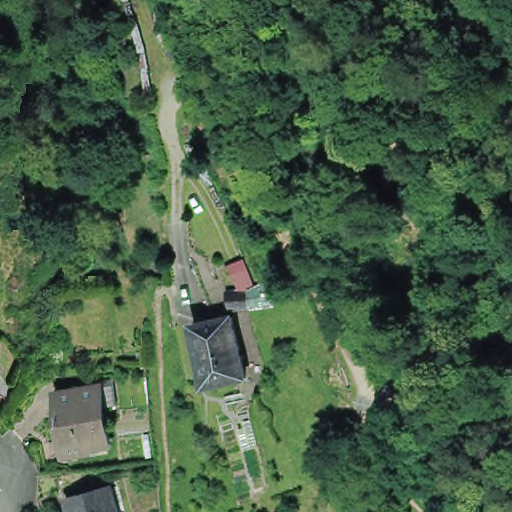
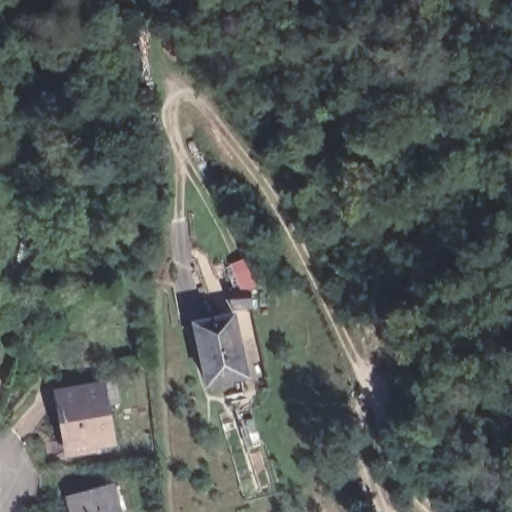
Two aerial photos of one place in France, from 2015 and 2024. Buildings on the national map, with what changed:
unchanged [(232,294),(244,293),(239,268),(257,264),(262,290),(262,293),(251,295),(256,313),(237,317),(232,294)]
unchanged [(200,347),(196,326),(237,317),(241,339),(250,379),(209,389),(200,347)]
unchanged [(91,441),(86,448),(65,451),(58,389),(82,385),(81,376),(110,371),(115,405),(103,407),(108,439),(91,441)]
unchanged [(83,482),(122,483),(121,512),(76,512),(76,508),(83,508),(83,482)]

